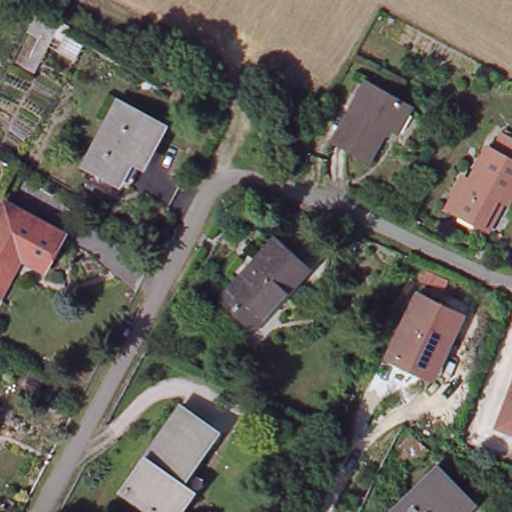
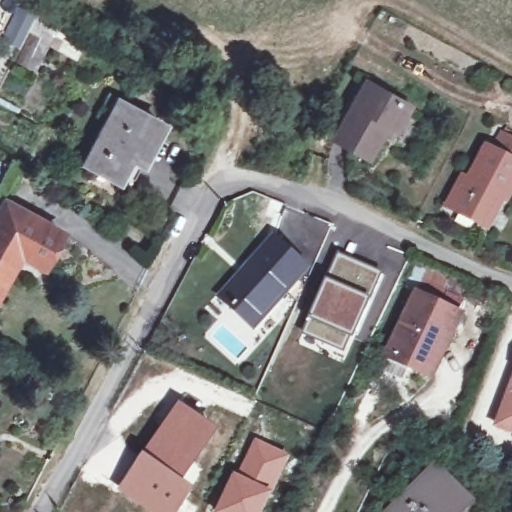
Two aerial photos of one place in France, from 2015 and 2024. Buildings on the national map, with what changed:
new [(22,9),(37,16),(22,45),(7,37),(22,9)]
unchanged [(390,122),(371,157),(336,139),(366,82),(411,106),(400,127),(390,122)]
unchanged [(116,180),(83,164),(115,102),(160,124),(142,160),(128,186),(116,180)]
unchanged [(449,206),(464,177),(470,181),(488,146),(495,149),(503,132),(512,136),(512,197),(510,201),(494,231),(485,225),(449,206)]
unchanged [(40,267),(19,256),(0,290),(0,211),(5,203),(60,233),(40,267)]
unchanged [(271,301),(275,305),(253,328),(221,297),(276,237),(304,263),(271,301)]
new [(338,255),(382,274),(371,300),(326,280),(338,255)]
new [(302,335),(310,317),(326,280),(371,300),(355,337),(345,355),(302,335)]
unchanged [(426,374),(389,356),(420,292),(465,313),(449,346),(434,377),(426,374)]
unchanged [(512,373),(512,427),(494,420),(512,373)]
unchanged [(51,401),(25,388),(32,375),(58,389),(51,401)]
unchanged [(192,493),(179,512),(156,512),(124,490),(182,406),(216,430),(190,470),(202,479),(192,493)]
new [(254,438),(291,456),(275,492),(235,473),(254,438)]
unchanged [(463,512),(393,512),(439,467),(473,501),(463,512)]
new [(235,473),(275,492),(265,512),(217,512),(235,473)]

